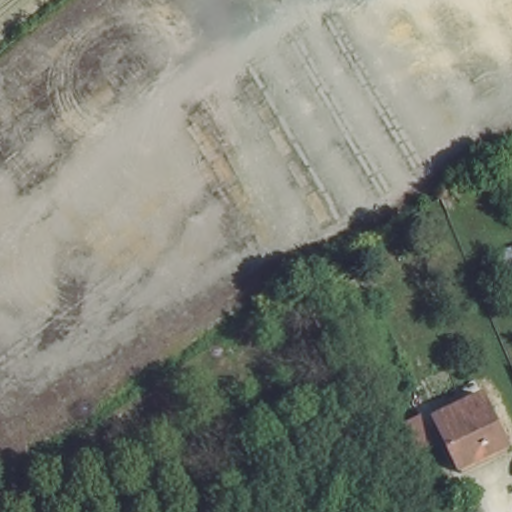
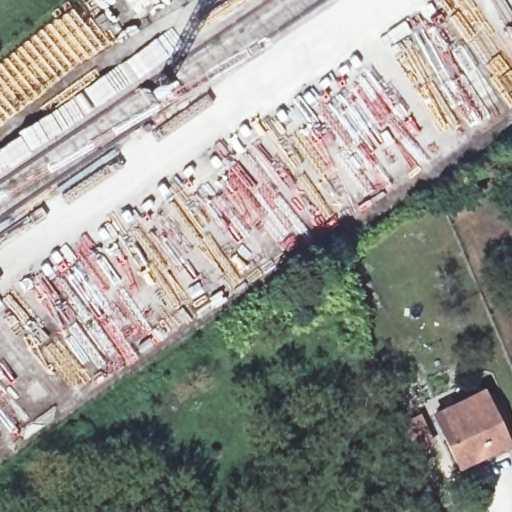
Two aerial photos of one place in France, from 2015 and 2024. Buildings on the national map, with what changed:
unchanged [(493,245),(512,237),(512,266),(504,270),(493,245)]
unchanged [(507,441),(459,463),(445,433),(453,429),(442,403),(483,385),(507,441)]

